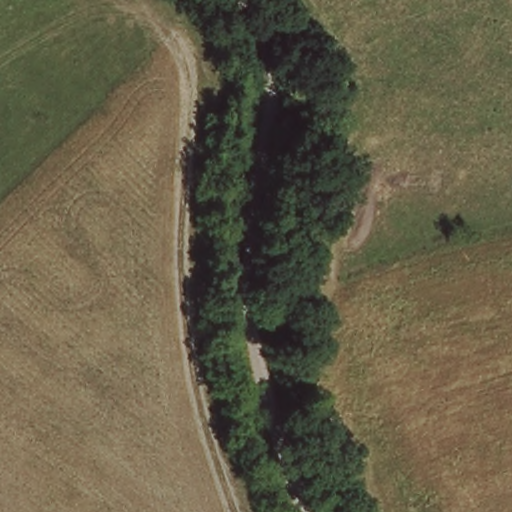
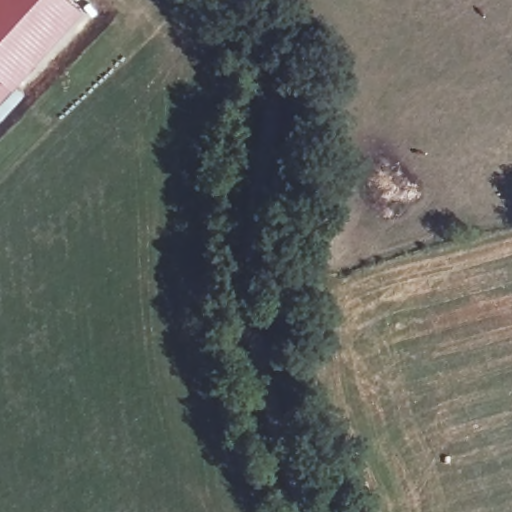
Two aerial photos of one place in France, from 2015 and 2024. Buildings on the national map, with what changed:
new [(0,0),(70,0),(73,3),(84,16),(16,88),(25,95),(0,122),(0,0)]

